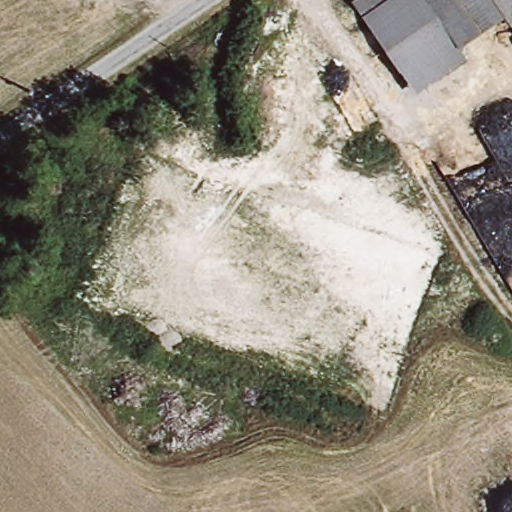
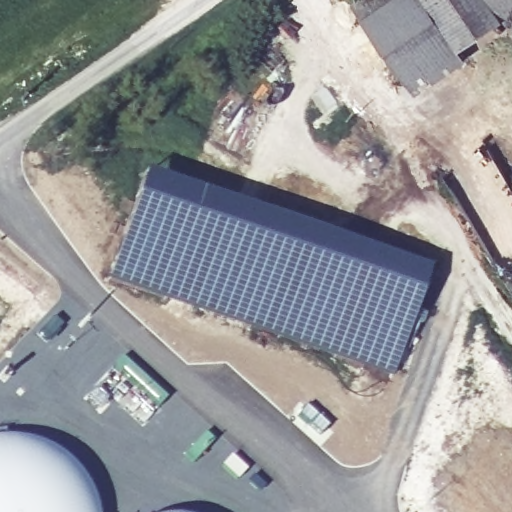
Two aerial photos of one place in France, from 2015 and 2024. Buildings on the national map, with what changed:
unchanged [(364,0),(483,0),(498,22),(409,84),(355,7),(364,0)]
unchanged [(490,0),(512,0),(512,31),(490,0)]
new [(140,177),(429,270),(393,376),(106,277),(140,177)]

